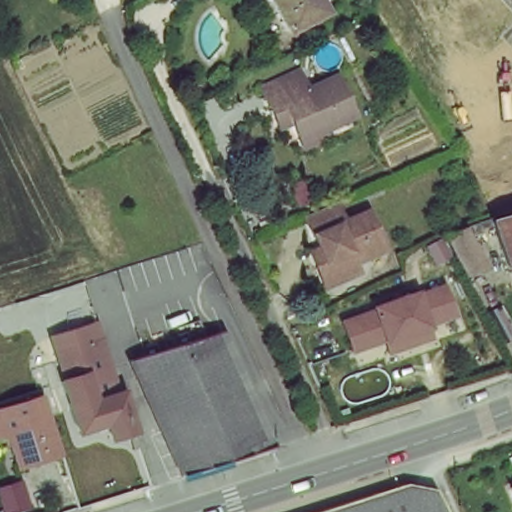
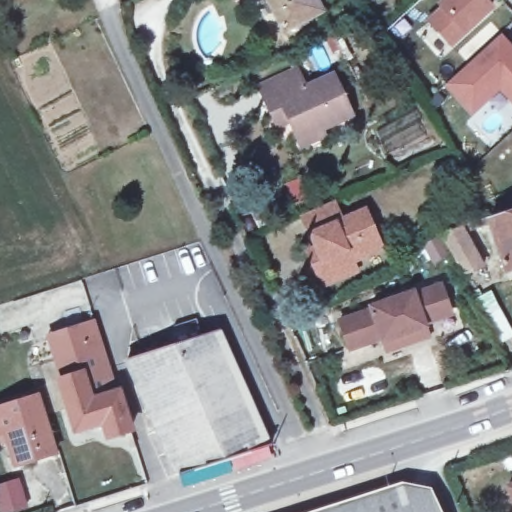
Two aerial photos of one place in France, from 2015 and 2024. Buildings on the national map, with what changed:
unchanged [(322,10),(285,29),(274,8),(269,0),(316,0),(322,10)]
new [(435,23),(431,19),(436,13),(425,0),(464,0),(482,20),(440,59),(420,34),(435,23)]
new [(512,73),(512,110),(505,117),(490,101),(463,126),(437,98),(490,49),(512,73)]
unchanged [(301,142),(297,133),(286,112),(273,118),(265,101),(258,86),(255,81),(293,63),(295,68),(302,82),(330,68),(348,108),(322,121),(326,130),(301,142)]
unchanged [(286,189),(300,183),(309,202),(295,208),(286,189)]
unchanged [(319,250),(304,217),(335,203),(343,221),(366,211),(383,247),(354,261),(359,272),(326,287),(317,266),(311,253),(319,250)]
unchanged [(488,222),(512,214),(512,269),(507,271),(488,222)]
unchanged [(485,264),(465,274),(444,233),(443,232),(465,225),(485,264)]
unchanged [(385,337),(352,348),(343,320),(375,309),(375,306),(416,292),(417,295),(444,285),(454,313),(427,323),(427,325),(431,336),(390,350),(385,340),(385,337)]
unchanged [(110,388),(117,386),(129,427),(104,436),(100,423),(73,431),(55,377),(45,331),(89,319),(110,388)]
unchanged [(253,413),(256,418),(265,440),(173,470),(122,354),(129,352),(215,325),(241,385),(253,413)]
unchanged [(10,469),(0,436),(0,402),(1,402),(18,396),(20,396),(22,395),(33,392),(44,388),(47,400),(36,403),(52,457),(10,469)]
unchanged [(22,501),(0,510),(0,479),(13,477),(22,501)]
unchanged [(430,484),(442,512),(286,512),(397,477),(430,484)]
unchanged [(512,485),(512,503),(505,488),(512,485)]

